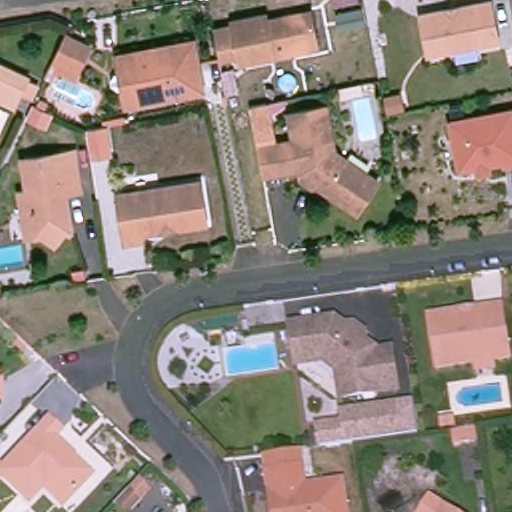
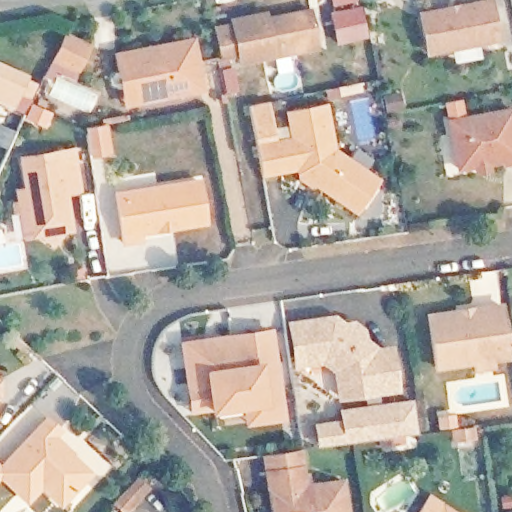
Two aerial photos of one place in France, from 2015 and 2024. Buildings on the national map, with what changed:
unchanged [(333,0),(353,0),(334,4),(333,0)]
unchanged [(446,11),(449,13),(455,12),(457,9),(490,2),(497,41),(427,55),(420,16),(446,11)]
unchanged [(275,62),(238,69),(237,60),(219,62),(214,32),(232,30),(231,25),(267,19),(268,25),(312,17),(318,49),(319,54),(275,62)]
unchanged [(74,83),(45,69),(62,34),(91,47),(74,83)]
unchanged [(187,41),(200,87),(172,92),(170,82),(131,89),(124,50),(187,41)]
unchanged [(122,102),(113,52),(124,50),(131,89),(170,82),(172,92),(122,102)]
unchanged [(0,94),(0,76),(6,64),(32,77),(23,95),(21,94),(16,102),(0,94)]
unchanged [(39,97),(51,102),(46,114),(34,108),(39,97)]
unchanged [(251,128),(267,127),(269,141),(290,137),(287,111),(324,105),(331,147),(369,183),(348,208),(295,165),(259,171),(254,144),(251,128)]
unchanged [(475,166),(459,169),(450,122),(511,110),(512,115),(512,163),(504,164),(503,160),(488,163),(489,171),(476,173),(475,166)]
unchanged [(24,187),(21,154),(56,150),(69,149),(72,170),(74,191),(61,192),(65,228),(20,234),(18,206),(15,187),(24,187)]
unchanged [(195,177),(201,218),(139,229),(141,237),(120,240),(112,190),(195,177)]
unchanged [(475,372),(473,361),(439,367),(431,314),(501,305),(508,355),(490,358),(490,367),(475,372)]
unchanged [(331,358),(317,362),(318,367),(304,367),(298,336),(297,327),(335,322),(345,330),(348,332),(355,330),(367,337),(372,341),(372,348),(373,349),(377,352),(383,356),(384,357),(394,355),(400,393),(345,398),(345,399),(344,394),(342,381),(342,378),(345,372),(331,358)]
new [(241,409),(209,412),(189,414),(180,343),(273,328),(286,421),(246,427),(241,409)]
unchanged [(3,380),(1,407),(0,407),(0,380),(3,380)]
unchanged [(314,423),(340,422),(338,414),(411,401),(416,435),(317,446),(314,423)]
unchanged [(36,489),(21,503),(0,482),(0,468),(44,422),(57,435),(50,443),(86,478),(65,500),(57,510),(36,489)]
unchanged [(263,455),(298,450),(302,487),(340,482),(343,512),(270,512),(263,455)]
unchanged [(133,503),(125,512),(115,512),(110,507),(123,493),(133,503)]
unchanged [(433,508),(442,512),(431,512),(433,508)]

